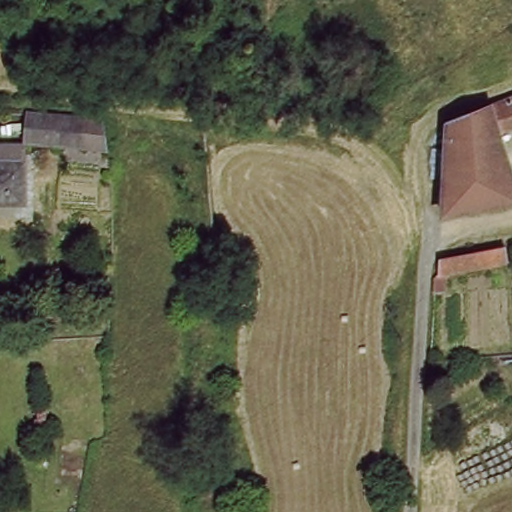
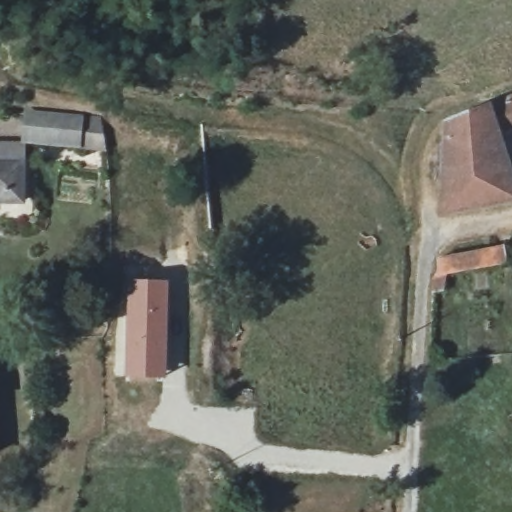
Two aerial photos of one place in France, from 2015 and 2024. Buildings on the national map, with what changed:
unchanged [(512,103),(512,135),(506,137),(512,167),(512,205),(444,219),(452,127),(512,103)]
unchanged [(26,109),(110,121),(108,148),(30,145),(29,205),(0,204),(0,138),(22,140),(26,109)]
unchanged [(511,244),(512,247),(512,262),(451,272),(446,256),(511,244)]
new [(124,279),(169,281),(165,380),(122,377),(124,279)]

